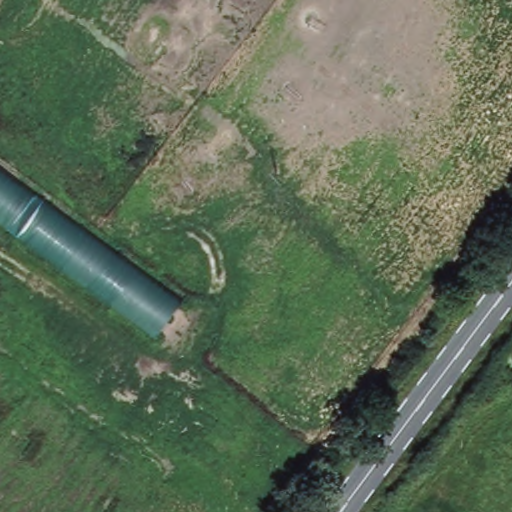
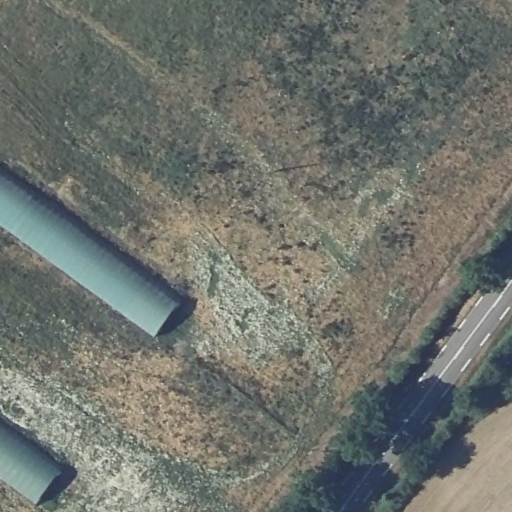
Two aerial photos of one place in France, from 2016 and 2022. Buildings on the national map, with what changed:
unchanged [(156,338),(0,224),(0,165),(184,299),(156,338)]
new [(40,503),(0,474),(0,421),(64,468),(40,503)]

